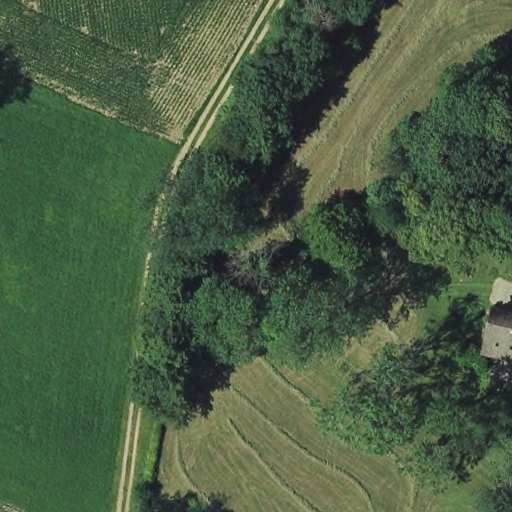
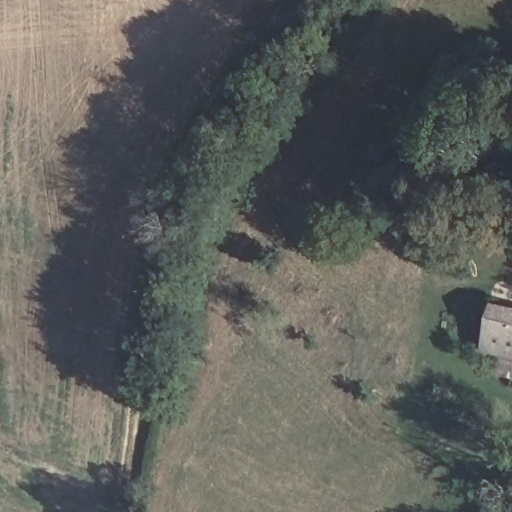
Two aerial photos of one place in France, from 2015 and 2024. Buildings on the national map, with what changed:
unchanged [(512,313),(512,355),(481,348),(489,308),(512,313)]

